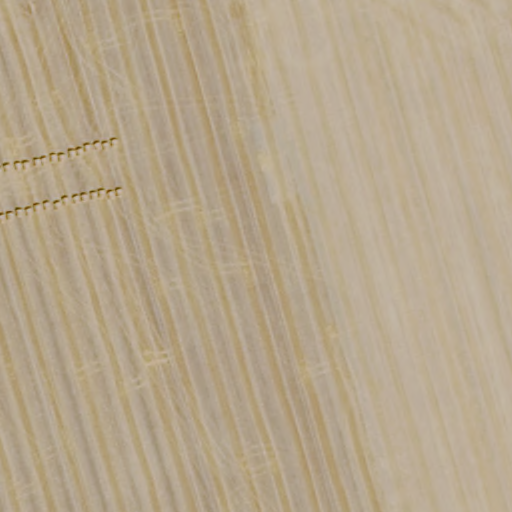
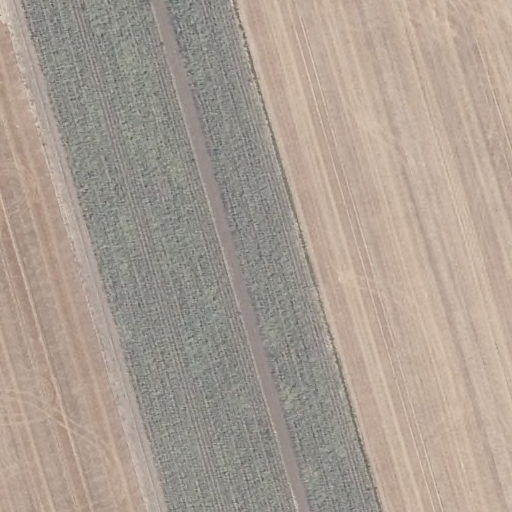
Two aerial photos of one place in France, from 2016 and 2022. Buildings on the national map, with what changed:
[]

